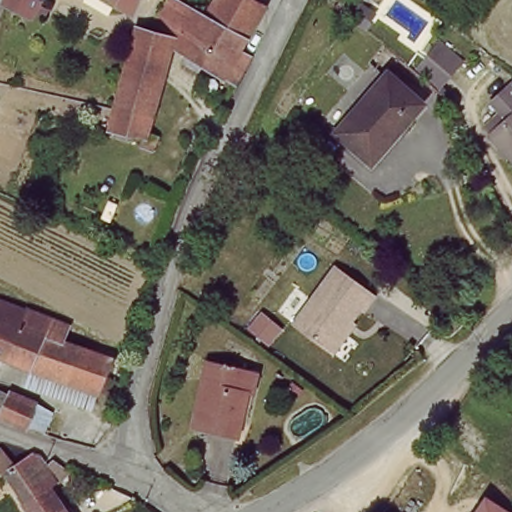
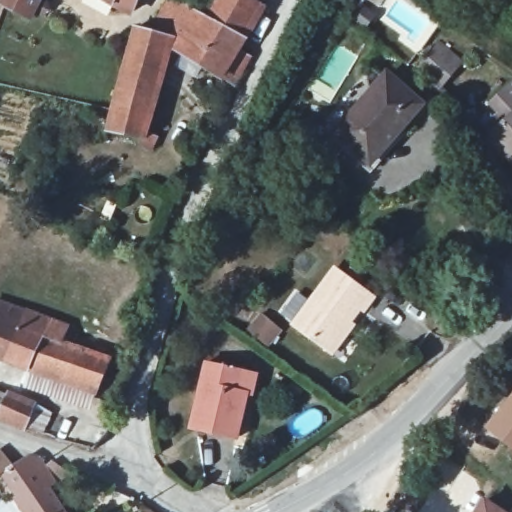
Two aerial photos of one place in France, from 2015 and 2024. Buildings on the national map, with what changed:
unchanged [(1,4),(3,0),(38,0),(29,18),(1,4)]
unchanged [(250,52),(233,82),(169,45),(142,131),(106,122),(112,105),(132,37),(136,23),(148,25),(163,0),(191,0),(204,7),(248,32),(240,45),(250,52)]
unchanged [(112,0),(141,0),(135,12),(112,0)]
unchanged [(266,0),(248,32),(204,7),(210,0),(266,0)]
unchanged [(469,62),(449,87),(445,92),(422,72),(446,44),(469,62)]
unchanged [(423,102),(370,161),(334,131),(387,70),(423,102)]
unchanged [(493,145),(496,142),(489,135),(505,121),(496,112),(511,98),(512,97),(512,165),(511,164),(507,167),(500,161),(505,157),(493,145)]
unchanged [(335,355),(331,352),(294,328),(300,320),(283,307),(294,293),(309,306),(332,270),(373,296),(364,310),(360,307),(350,322),(354,325),(335,355)]
unchanged [(114,358),(99,397),(50,377),(44,375),(42,373),(33,370),(8,359),(0,356),(0,320),(20,327),(23,327),(46,335),(65,341),(114,358)]
unchanged [(193,424),(208,357),(246,366),(241,387),(248,388),(238,433),(193,424)]
unchanged [(10,394),(39,406),(35,416),(28,431),(2,421),(0,420),(0,418),(10,394)]
new [(512,449),(487,428),(512,397),(512,449)]
unchanged [(1,475),(0,475),(0,449),(8,464),(9,463),(12,468),(31,458),(39,473),(47,466),(64,475),(45,490),(58,512),(22,512),(1,475)]
unchanged [(485,499),(506,512),(477,512),(485,499)]

